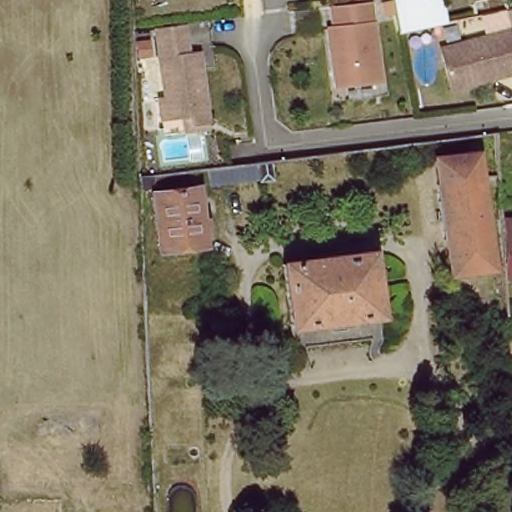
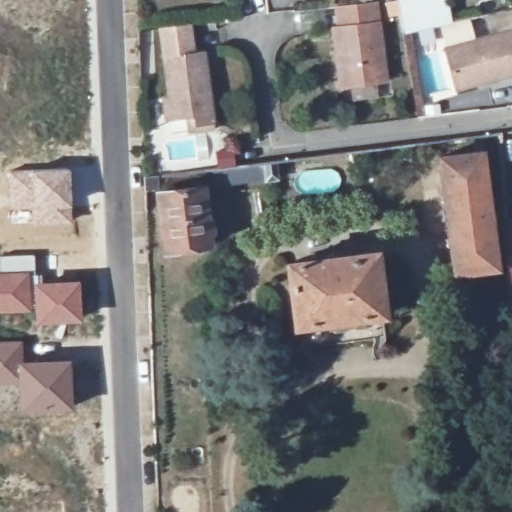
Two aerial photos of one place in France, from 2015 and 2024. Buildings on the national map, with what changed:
unchanged [(404,34),(401,1),(400,0),(444,0),(448,25),(404,34)]
unchanged [(376,9),(384,88),(339,92),(334,33),(339,32),(336,13),(376,9)]
unchanged [(191,137),(191,132),(197,131),(196,122),(174,125),(168,125),(165,104),(171,103),(164,34),(194,31),(198,61),(208,59),(216,129),(216,135),(191,137)]
unchanged [(512,36),(512,80),(455,96),(444,54),(512,36)]
unchanged [(436,164),(473,159),(471,147),(479,146),(482,163),(484,185),(495,272),(451,278),(436,164)]
unchanged [(202,181),(171,183),(145,186),(144,174),(259,160),(274,158),(276,180),(203,188),(202,181)]
new [(69,167),(72,223),(29,224),(28,211),(9,212),(6,171),(69,167)]
unchanged [(209,244),(165,249),(159,194),(203,188),(209,244)]
unchanged [(509,287),(506,250),(506,247),(505,230),(504,225),(512,224),(512,286),(509,287)]
unchanged [(314,260),(313,253),(349,249),(349,255),(376,252),(384,317),(356,320),(357,325),(326,328),(324,323),(295,327),(288,262),(314,260)]
new [(34,270),(33,282),(33,311),(0,313),(0,255),(33,254),(34,270)]
new [(79,279),(80,322),(34,324),(33,311),(33,282),(79,279)]
new [(23,361),(19,361),(18,386),(0,386),(0,341),(22,340),(23,361)]
new [(19,361),(23,361),(71,358),(72,410),(19,415),(18,386),(19,361)]
demolished [(39,500),(71,500),(71,502),(71,512),(39,512),(39,500)]

